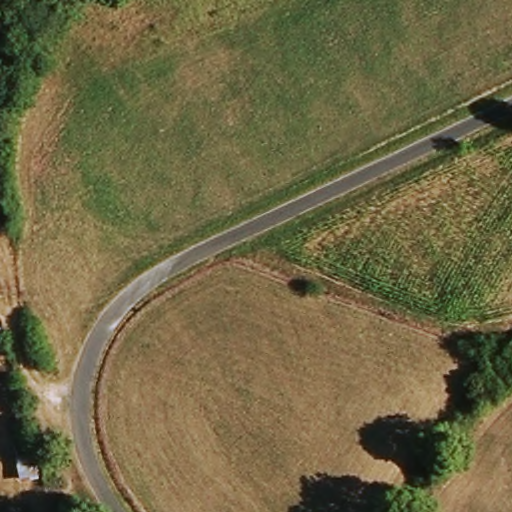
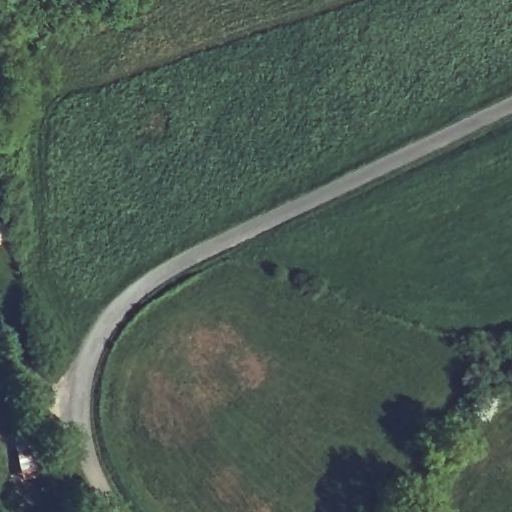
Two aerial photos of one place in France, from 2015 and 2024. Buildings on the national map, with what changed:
[]

